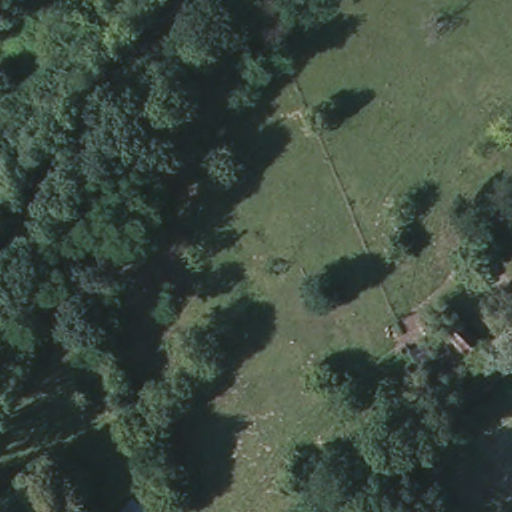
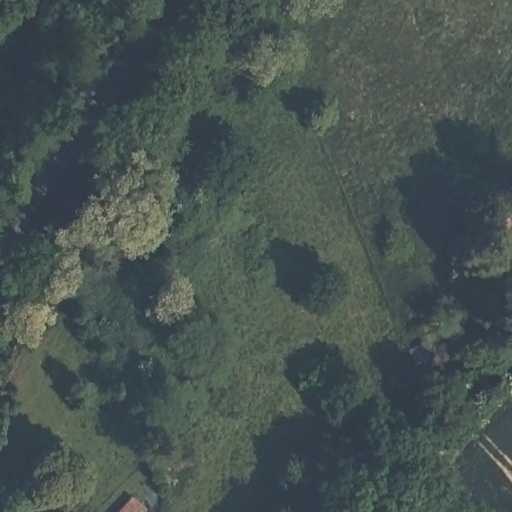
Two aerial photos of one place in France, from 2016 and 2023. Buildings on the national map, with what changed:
unchanged [(465,302),(488,332),(477,341),(452,311),(465,302)]

